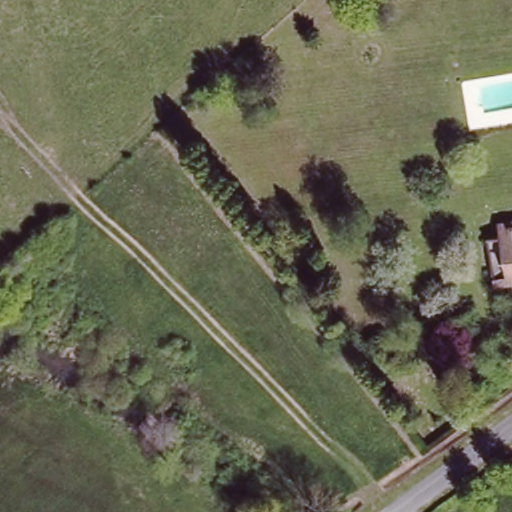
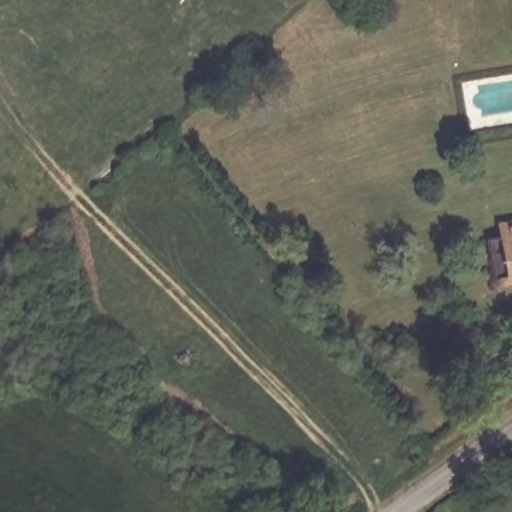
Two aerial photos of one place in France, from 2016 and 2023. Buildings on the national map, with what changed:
unchanged [(499,220),(512,218),(512,240),(502,242),(499,220)]
unchanged [(483,245),(502,242),(512,240),(512,283),(491,287),(483,245)]

